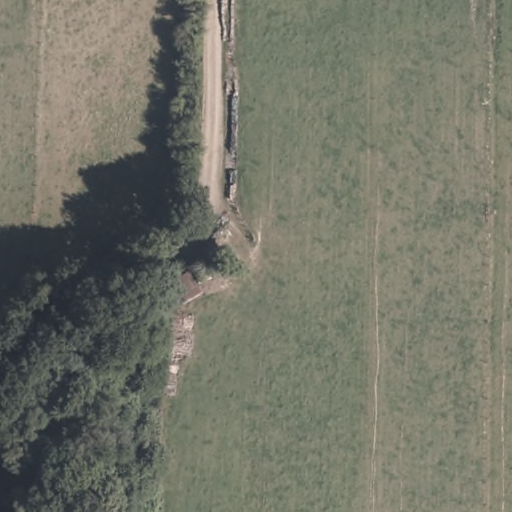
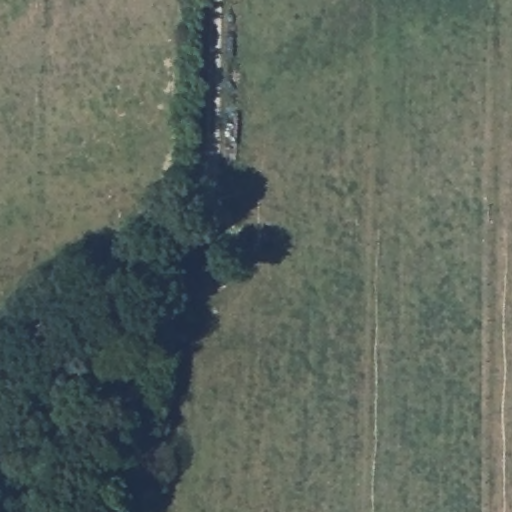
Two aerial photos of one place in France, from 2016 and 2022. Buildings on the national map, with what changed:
unchanged [(213,254),(220,266),(193,280),(200,291),(180,303),(164,281),(213,254)]

